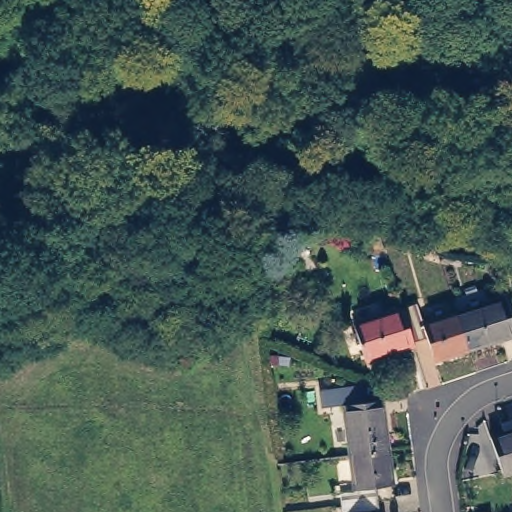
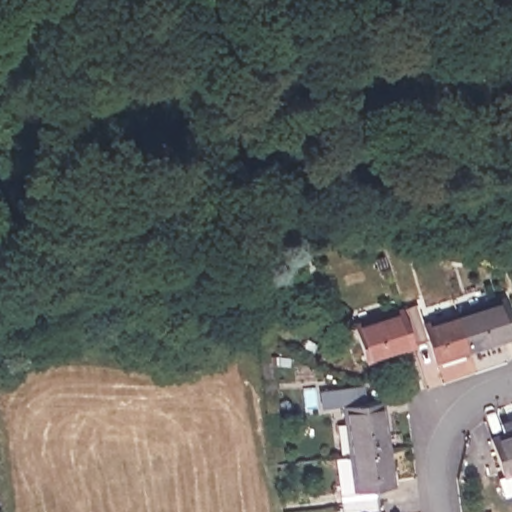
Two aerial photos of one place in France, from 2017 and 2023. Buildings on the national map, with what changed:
unchanged [(501,298),(512,333),(464,349),(452,314),(501,298)]
unchanged [(413,304),(419,324),(452,314),(464,349),(431,360),(423,337),(409,341),(398,309),(413,304)]
unchanged [(409,341),(409,344),(361,360),(349,325),(398,309),(409,341)]
unchanged [(344,404),(324,407),(322,391),(361,385),(364,402),(381,399),(388,450),(351,454),(344,404)]
unchanged [(512,470),(503,473),(490,437),(512,430),(512,470)]
unchanged [(388,450),(392,485),(376,487),(378,502),(344,506),(341,491),(354,489),(351,454),(388,450)]
unchanged [(378,502),(379,512),(344,512),(344,506),(378,502)]

